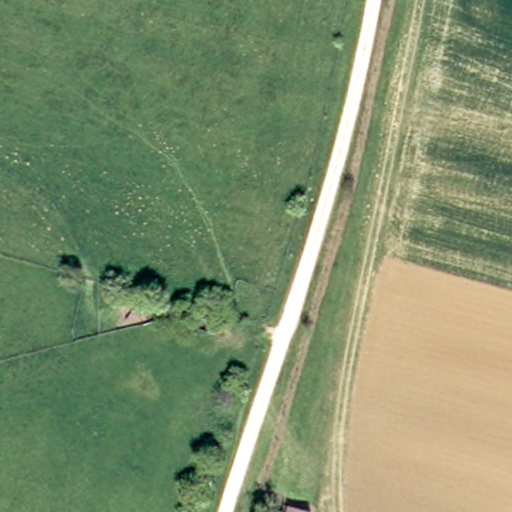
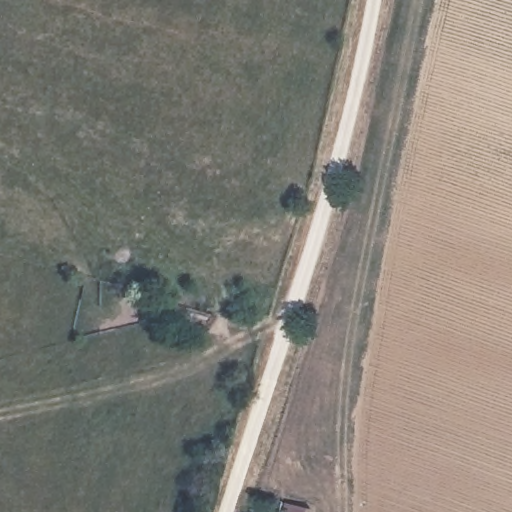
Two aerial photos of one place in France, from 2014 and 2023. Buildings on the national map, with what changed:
unchanged [(313,512),(284,512),(287,501),(315,508),(313,512)]

